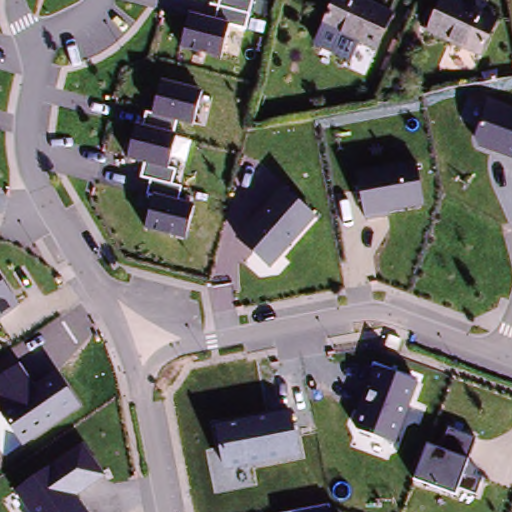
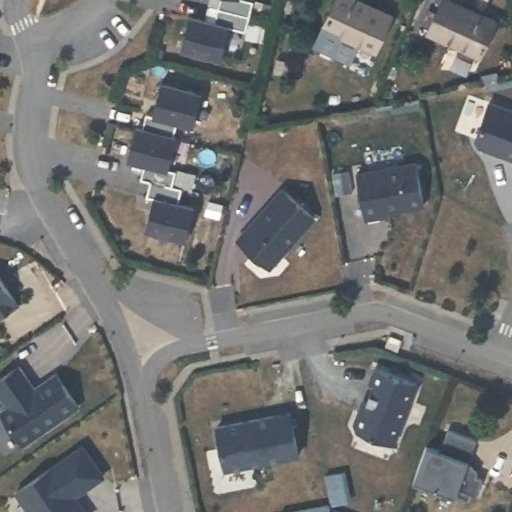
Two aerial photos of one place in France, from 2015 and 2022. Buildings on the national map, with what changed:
unchanged [(190,15),(207,19),(212,0),(227,0),(222,24),(230,25),(222,60),(182,50),(190,15)]
unchanged [(375,48),(324,25),(337,0),(363,0),(390,13),(375,48)]
unchanged [(480,56),(425,32),(441,0),(458,0),(498,19),(480,56)]
unchanged [(185,241),(143,230),(153,196),(146,194),(148,183),(138,180),(142,165),(127,161),(136,125),(140,127),(145,113),(154,115),(162,81),(202,93),(192,127),(172,121),(169,135),(178,136),(170,166),(172,168),(167,186),(180,188),(177,202),(195,208),(185,241)]
unchanged [(512,160),(477,148),(472,137),(488,101),(512,109),(512,160)]
unchanged [(417,164),(423,207),(388,213),(387,217),(364,221),(356,172),(417,164)]
unchanged [(317,216),(269,269),(233,240),(282,188),(317,216)]
unchanged [(19,302),(0,313),(0,275),(19,302)]
unchanged [(23,447),(0,415),(0,410),(6,406),(0,396),(0,376),(20,364),(37,387),(57,372),(80,405),(23,447)]
unchanged [(395,446),(352,428),(375,367),(418,385),(395,446)]
unchanged [(302,457),(225,470),(218,424),(290,411),(302,457)]
unchanged [(440,450),(448,429),(475,440),(455,497),(413,480),(427,445),(440,450)]
unchanged [(78,500),(87,512),(28,512),(15,491),(83,444),(105,478),(78,500)]
unchanged [(294,512),(330,506),(331,512),(294,512)]

